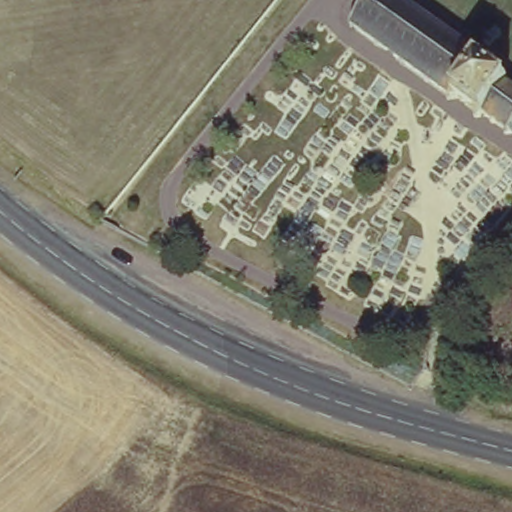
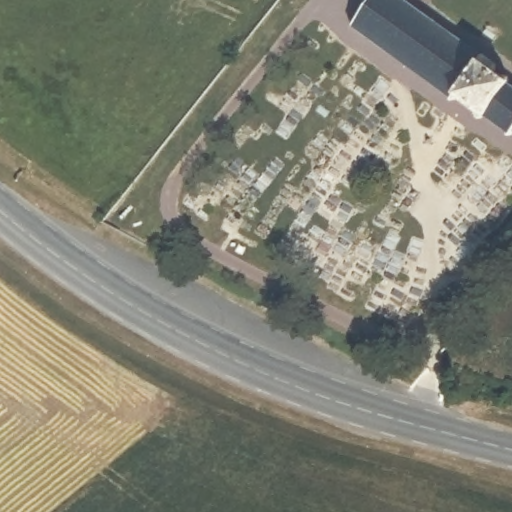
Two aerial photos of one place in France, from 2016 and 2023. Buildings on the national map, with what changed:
unchanged [(475,115),(477,113),(457,100),(456,102),(453,100),(451,102),(449,101),(449,97),(431,84),(429,86),(426,84),(427,81),(406,67),(404,68),(401,66),(401,63),(380,48),(377,49),(375,47),(376,45),(357,31),(355,33),(351,30),(352,28),(350,27),(352,23),(355,24),(372,0),(398,0),(405,4),(406,3),(411,6),(411,9),(430,22),(432,21),(436,24),(436,26),(455,40),(458,39),(461,42),(461,44),(480,57),(482,55),(498,65),(496,68),(499,70),(499,72),(503,76),(504,75),(507,76),(508,74),(511,75),(510,78),(511,79),(508,84),(512,87),(512,136),(511,135),(509,137),(507,135),(508,133),(507,131),(498,124),(495,126),(492,123),(492,121),(484,115),(481,120),(479,119),(477,120),(476,119),(477,116),(475,115)]

